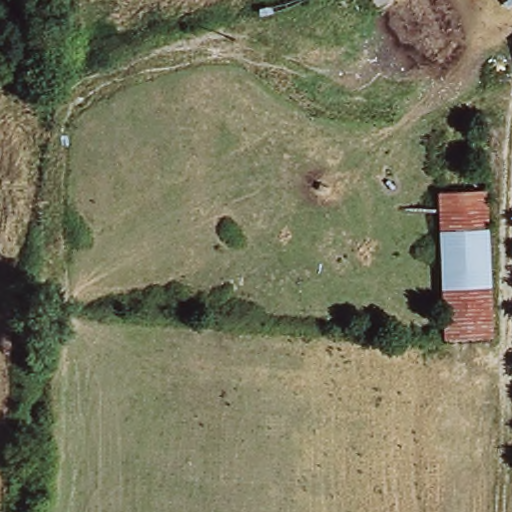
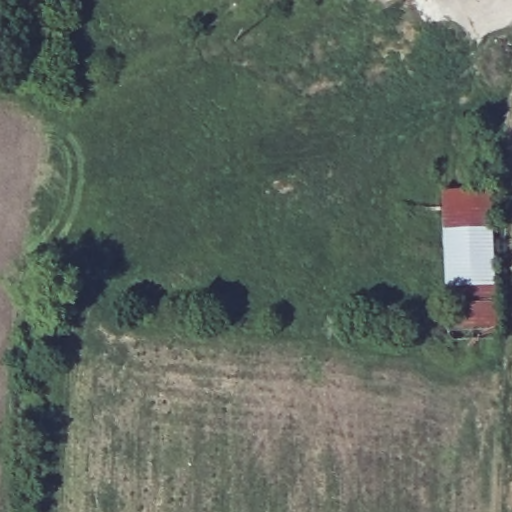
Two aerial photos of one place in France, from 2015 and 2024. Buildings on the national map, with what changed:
unchanged [(377,0),(380,0),(378,1),(377,0)]
unchanged [(443,191),(488,190),(490,343),(445,342),(443,191)]

